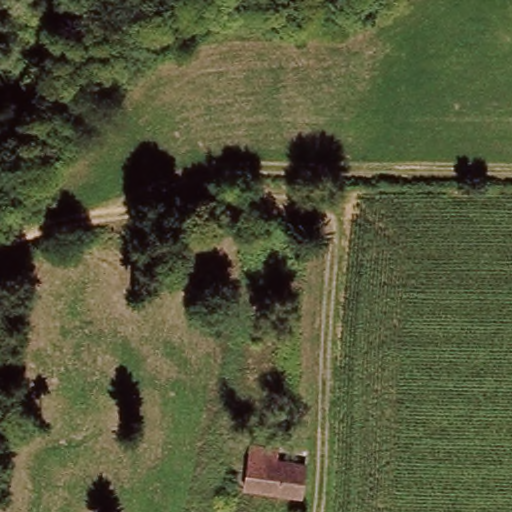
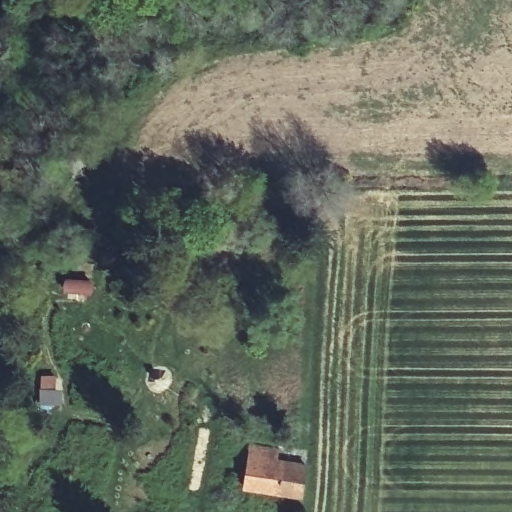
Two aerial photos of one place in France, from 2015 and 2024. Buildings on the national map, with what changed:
unchanged [(245,485),(250,453),(302,461),(297,492),(245,485)]

